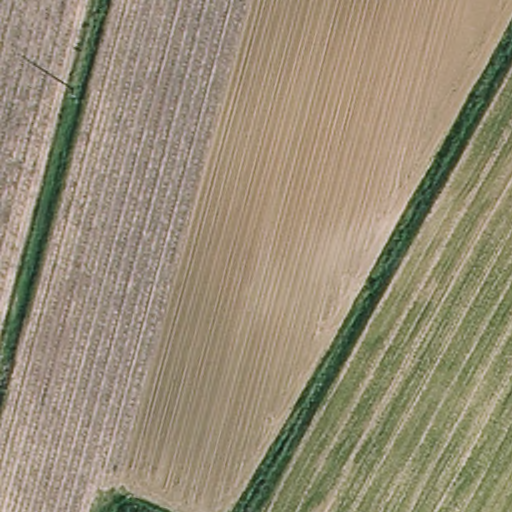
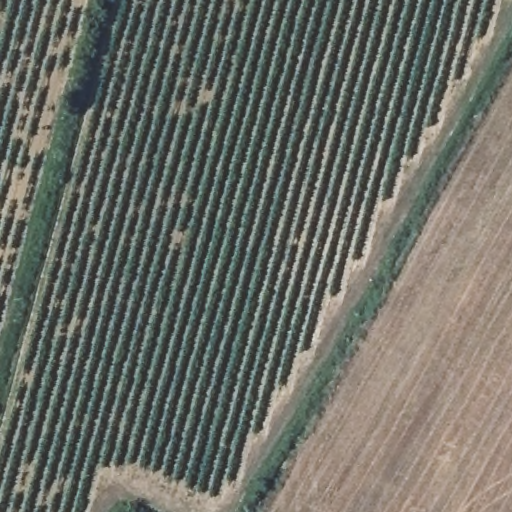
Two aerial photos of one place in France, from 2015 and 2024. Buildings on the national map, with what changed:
[]

